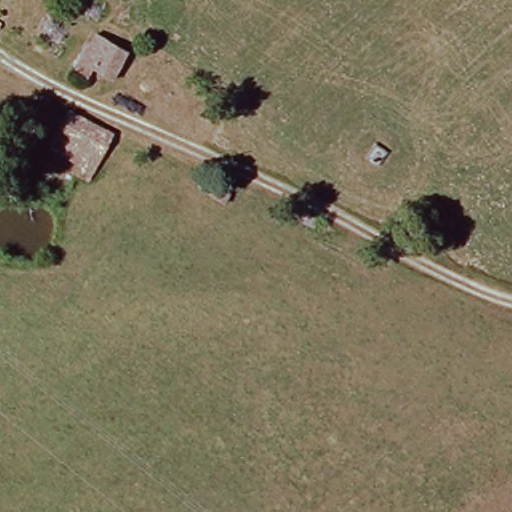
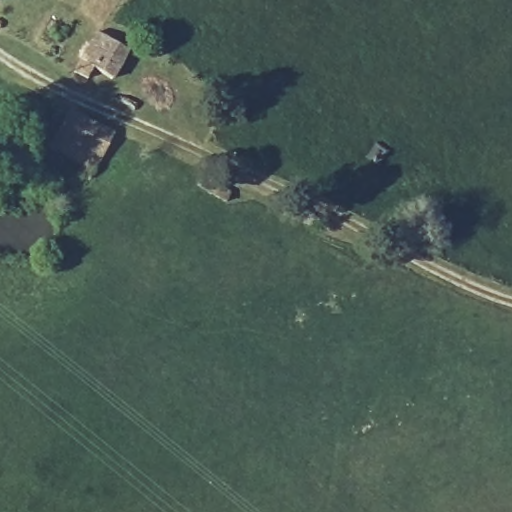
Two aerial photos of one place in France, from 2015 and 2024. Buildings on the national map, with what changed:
unchanged [(94,71),(89,80),(72,70),(96,31),(128,49),(111,80),(94,71)]
unchanged [(76,174),(81,165),(48,147),(69,109),(114,132),(88,180),(76,174)]

